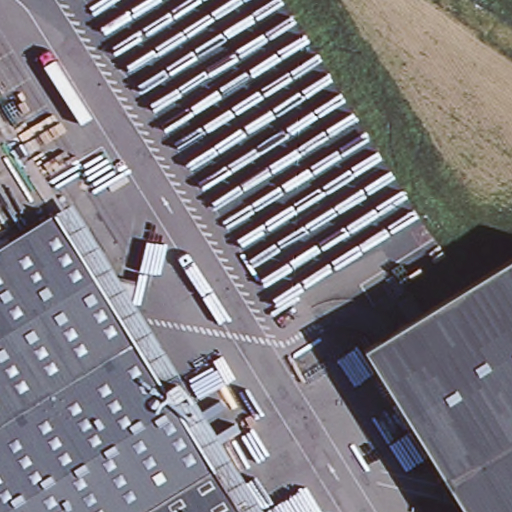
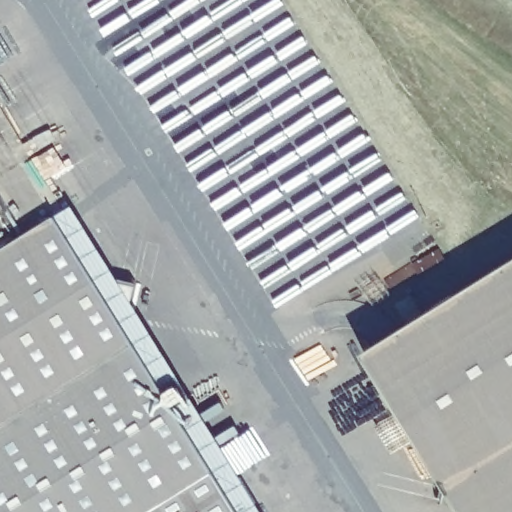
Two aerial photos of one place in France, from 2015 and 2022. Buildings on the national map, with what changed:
unchanged [(52,220),(236,512),(0,512),(0,252),(52,220)]
unchanged [(461,507),(442,501),(447,484),(438,469),(365,351),(407,325),(395,305),(410,295),(423,316),(512,260),(512,512),(465,512),(461,507)]

